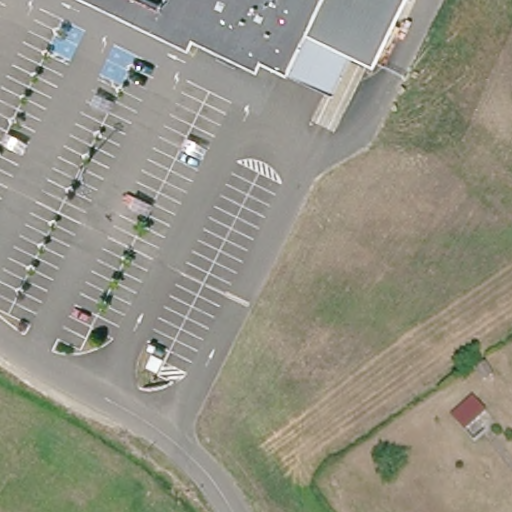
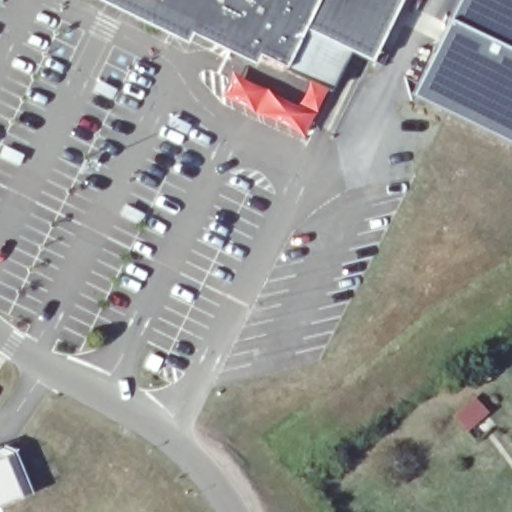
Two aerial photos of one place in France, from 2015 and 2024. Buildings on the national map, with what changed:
unchanged [(369,61),(303,29),(282,69),(255,56),(252,65),(188,34),(183,43),(96,0),(399,0),(369,61)]
new [(454,0),(512,0),(512,51),(445,19),(454,0)]
new [(445,19),(512,51),(512,146),(469,125),(408,97),(445,19)]
new [(303,29),(349,51),(329,93),(282,69),(303,29)]
unchanged [(482,375),(491,369),(498,380),(488,386),(482,375)]
unchanged [(457,421),(478,402),(491,418),(469,436),(457,421)]
unchanged [(0,506),(0,445),(13,452),(29,492),(20,498),(0,506)]

